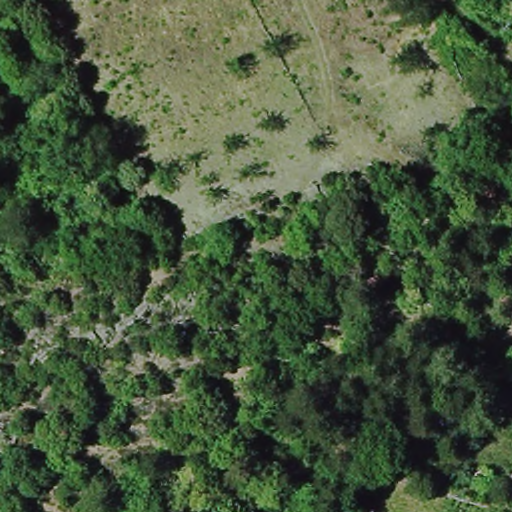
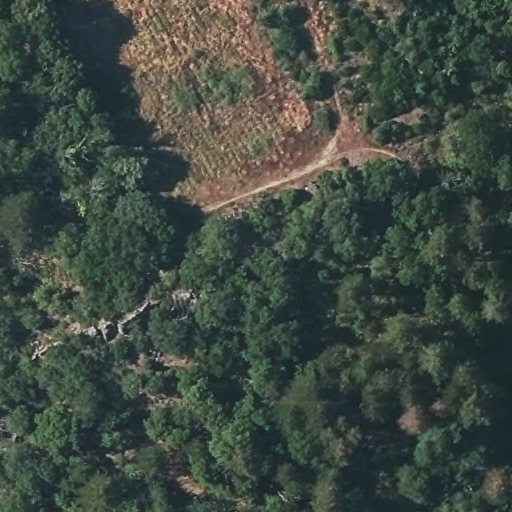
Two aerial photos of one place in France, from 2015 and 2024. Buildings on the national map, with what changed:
unchanged [(217,319),(232,315),(236,329),(212,335),(217,319)]

